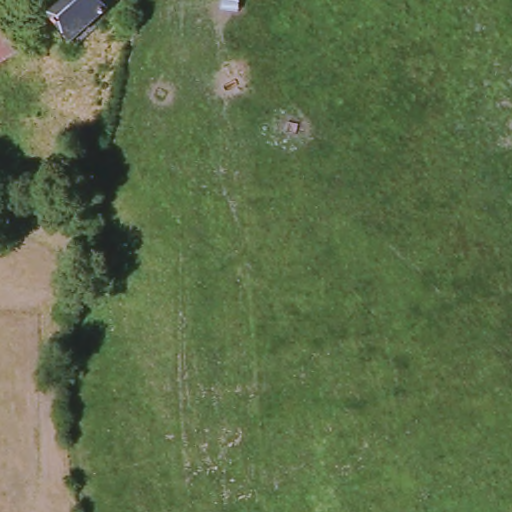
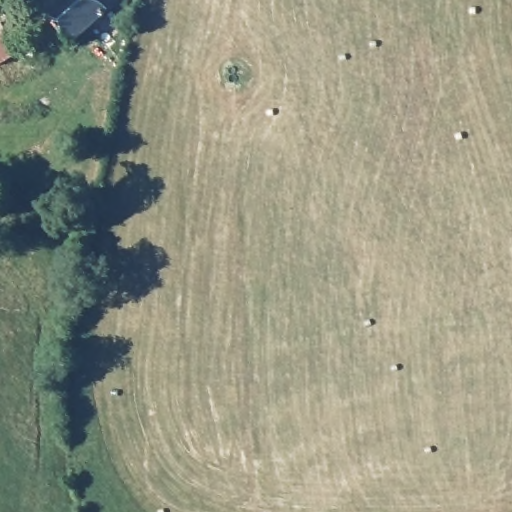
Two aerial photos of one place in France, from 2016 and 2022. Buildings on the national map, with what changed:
unchanged [(43,0),(116,0),(71,40),(39,4),(43,0)]
unchanged [(18,50),(0,62),(0,23),(18,50)]

